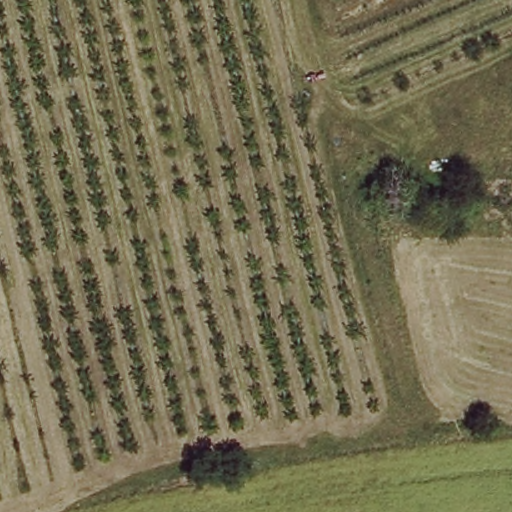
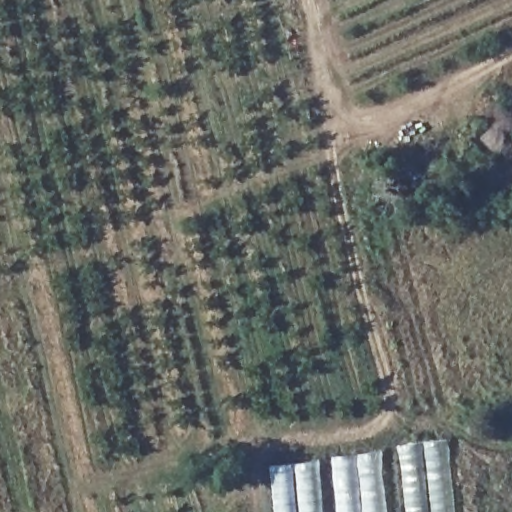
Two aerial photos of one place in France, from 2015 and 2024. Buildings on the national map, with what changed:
new [(448,440),(456,512),(406,512),(398,447),(448,440)]
new [(337,512),(331,457),(383,449),(390,512),(337,512)]
new [(319,461),(325,512),(276,512),(272,467),(319,461)]

